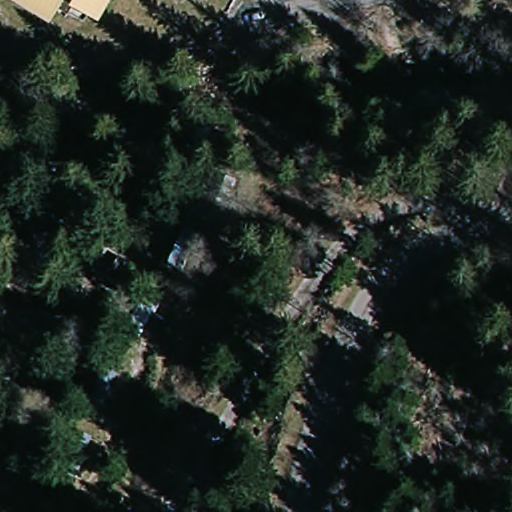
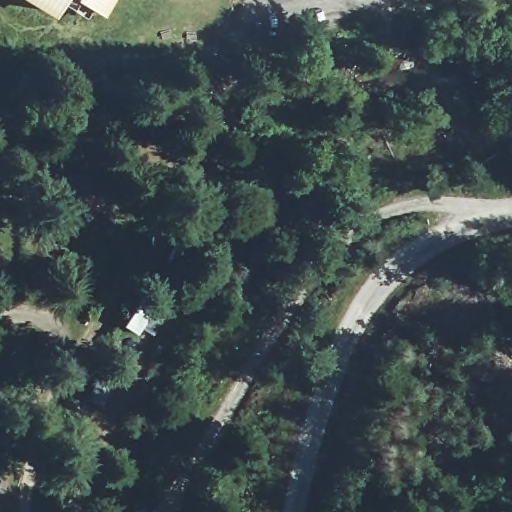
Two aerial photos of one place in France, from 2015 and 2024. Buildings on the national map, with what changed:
unchanged [(54,19),(25,0),(65,0),(54,19)]
unchanged [(99,11),(79,0),(107,0),(99,11)]

